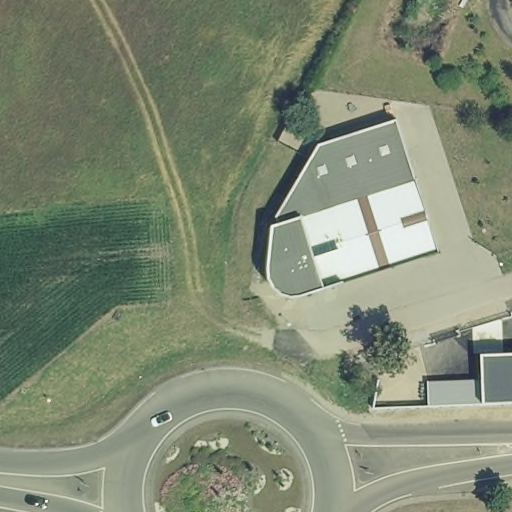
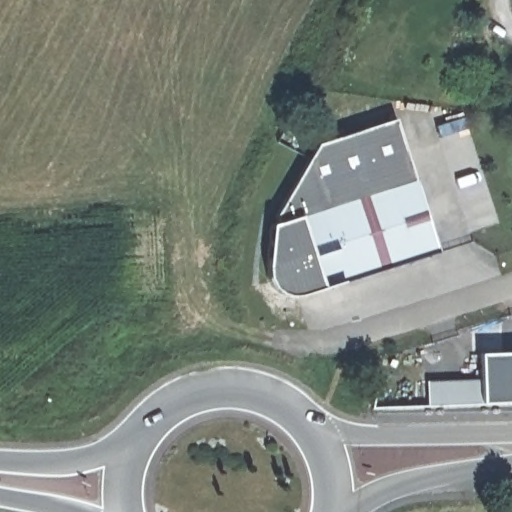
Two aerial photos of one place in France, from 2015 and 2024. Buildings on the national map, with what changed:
unchanged [(419,179),(442,251),(304,296),(294,297),(287,295),(284,294),(277,288),(272,279),(272,278),(276,225),(283,223),(279,217),(322,145),(400,120),(419,179)]
unchanged [(480,353),(512,352),(512,402),(482,403),(428,405),(427,382),(482,380),(480,353)]

